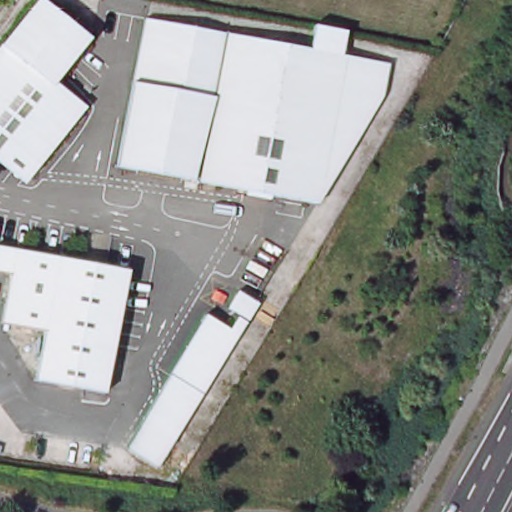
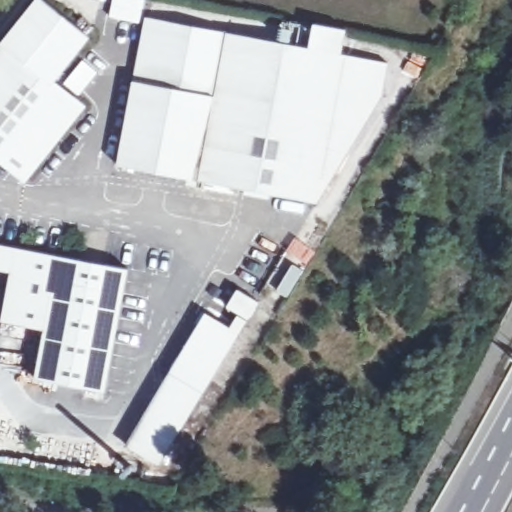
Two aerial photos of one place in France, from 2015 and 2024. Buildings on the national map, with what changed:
unchanged [(41,0),(43,0),(89,36),(53,81),(86,107),(41,163),(29,179),(0,155),(0,53),(41,0)]
unchanged [(381,93),(316,200),(199,178),(118,163),(134,80),(147,17),(228,31),(309,46),(313,23),(345,28),(341,52),(389,61),(381,93)]
unchanged [(48,330),(5,322),(14,273),(0,270),(0,243),(131,267),(108,392),(38,379),(48,330)]
unchanged [(126,448),(203,319),(201,318),(204,312),(229,327),(237,314),(246,319),(234,338),(158,467),(126,448)]

